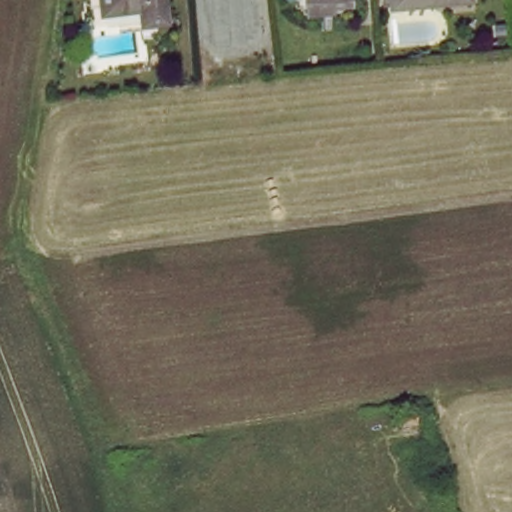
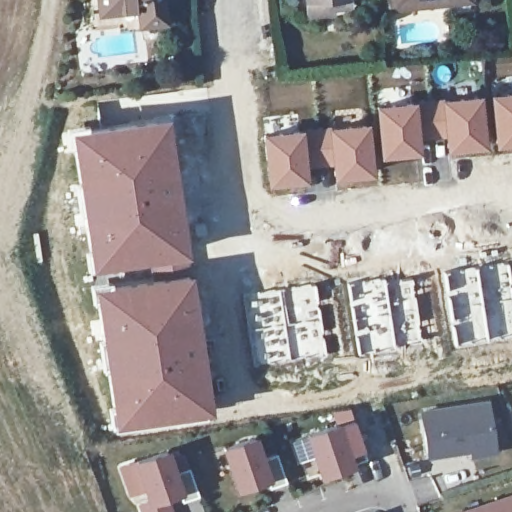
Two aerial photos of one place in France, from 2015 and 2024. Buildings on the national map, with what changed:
unchanged [(138,30),(136,10),(100,15),(98,0),(160,0),(164,26),(138,30)]
unchanged [(303,0),(346,0),(347,16),(305,19),(303,0)]
unchanged [(392,9),(390,0),(469,0),(470,2),(432,6),(392,9)]
new [(512,143),(494,145),(487,92),(512,90),(512,143)]
new [(482,92),(486,145),(443,149),(442,136),(420,139),(417,99),(482,92)]
new [(417,99),(420,139),(420,152),(379,158),(373,104),(417,99)]
new [(169,114),(189,270),(201,335),(212,411),(112,427),(91,284),(109,281),(107,270),(88,271),(75,173),(67,129),(169,114)]
new [(368,120),(373,173),(331,178),(329,164),(306,166),(304,128),(368,120)]
new [(304,128),(306,166),(308,180),(267,184),(262,133),(304,128)]
new [(479,322),(482,338),(454,344),(442,270),(475,265),(508,260),(510,277),(502,279),(504,287),(490,290),(490,293),(485,294),(485,296),(482,296),(485,320),(479,322)]
new [(386,276),(394,321),(397,348),(357,355),(345,281),(386,276)]
new [(401,320),(396,279),(413,277),(421,342),(397,348),(394,321),(401,320)]
new [(315,282),(327,355),(291,361),(280,288),(315,282)]
new [(280,288),(291,361),(263,364),(253,293),(280,288)]
new [(470,396),(477,444),(454,447),(453,442),(412,448),(405,407),(470,396)]
demolished [(390,408),(414,406),(416,429),(396,432),(390,408)]
new [(322,421),(326,431),(340,425),(350,453),(335,458),(336,459),(306,470),(292,431),(322,421)]
new [(238,434),(245,454),(261,448),(270,477),(255,483),(251,473),(222,483),(209,444),(238,434)]
new [(151,448),(158,468),(174,462),(183,490),(168,495),(164,486),(136,496),(122,458),(151,448)]
new [(512,512),(435,512),(435,510),(512,482),(512,512)]

